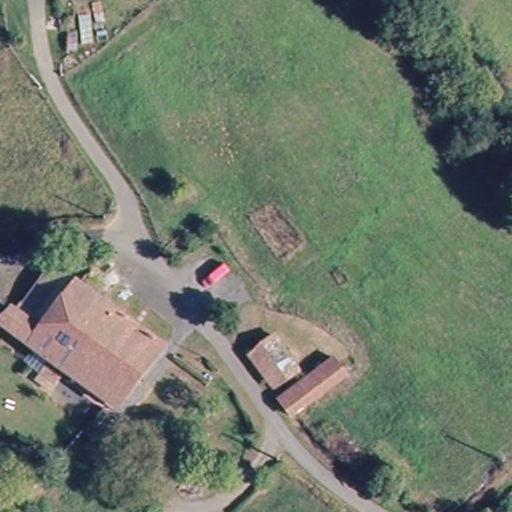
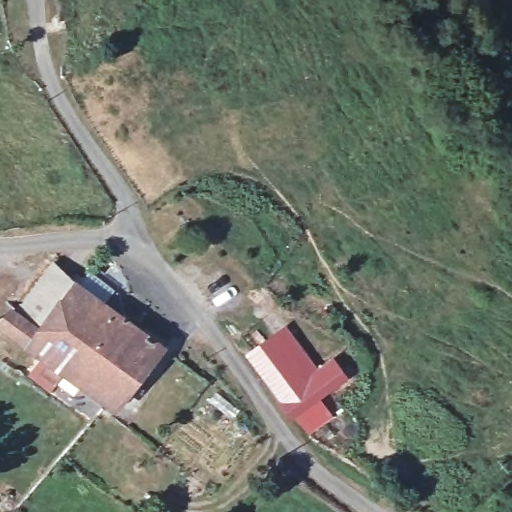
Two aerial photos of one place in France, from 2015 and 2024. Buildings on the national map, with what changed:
unchanged [(86,285),(32,348),(1,318),(57,260),(86,285)]
unchanged [(161,350),(105,412),(32,348),(86,285),(161,350)]
unchanged [(273,338),(297,365),(293,368),(271,387),(247,360),(273,338)]
unchanged [(295,418),(279,400),(299,383),(329,356),(346,374),(310,405),(295,418)]

